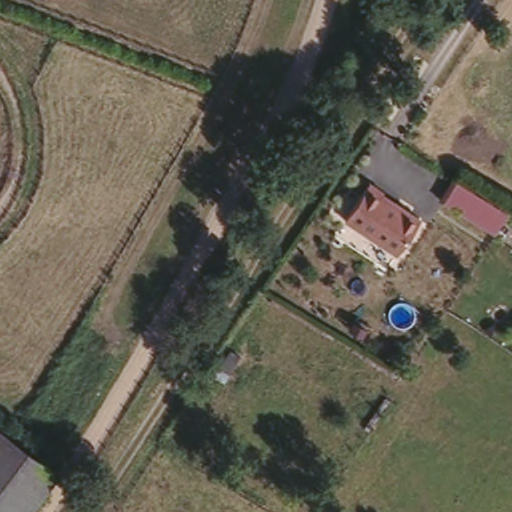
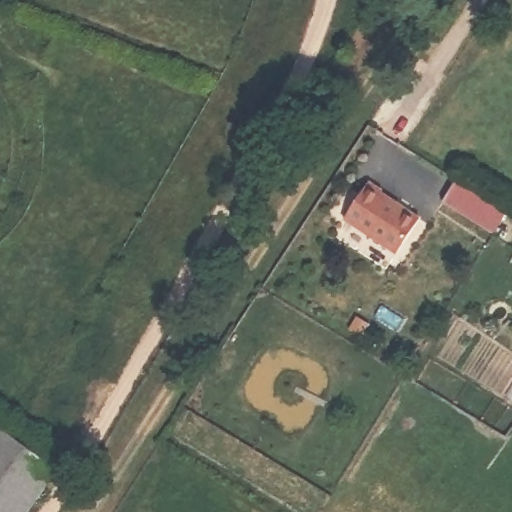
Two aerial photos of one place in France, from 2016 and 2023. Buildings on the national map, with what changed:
unchanged [(503,215),(490,236),(440,205),(453,182),(503,215)]
unchanged [(380,197),(378,200),(418,225),(396,261),(345,227),(367,190),(380,197)]
unchanged [(57,467),(28,512),(0,512),(0,424),(57,467)]

